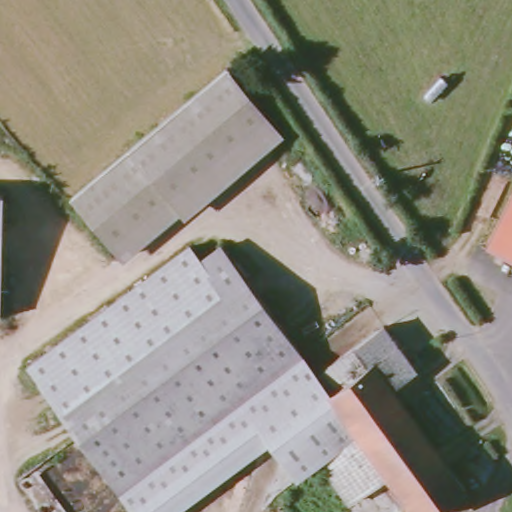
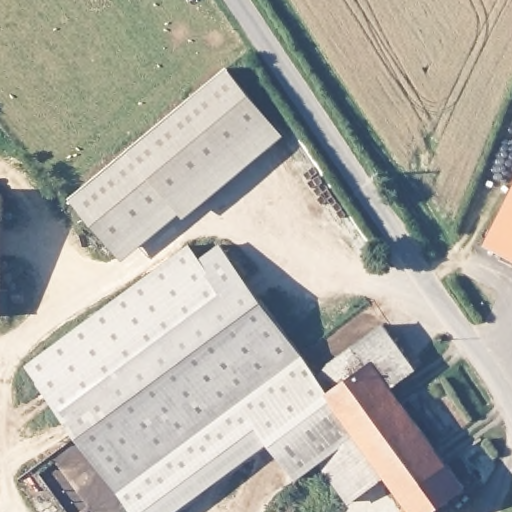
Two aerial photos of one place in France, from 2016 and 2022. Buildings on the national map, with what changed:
unchanged [(272,129),(122,255),(77,204),(229,76),(272,129)]
unchanged [(512,189),(512,255),(485,241),(512,189)]
unchanged [(2,193),(0,263),(0,193),(2,193)]
unchanged [(193,242),(204,257),(196,261),(217,287),(66,405),(33,359),(193,242)]
unchanged [(217,287),(196,261),(204,257),(225,242),(305,353),(162,455),(123,483),(66,405),(217,287)]
unchanged [(420,366),(395,384),(464,482),(423,512),(416,512),(387,470),(350,497),(323,460),(362,432),(320,375),(330,364),(388,320),(420,366)]
unchanged [(305,353),(320,375),(362,432),(323,460),(302,475),(275,436),(268,441),(170,512),(144,512),(123,483),(162,455),(305,353)]

